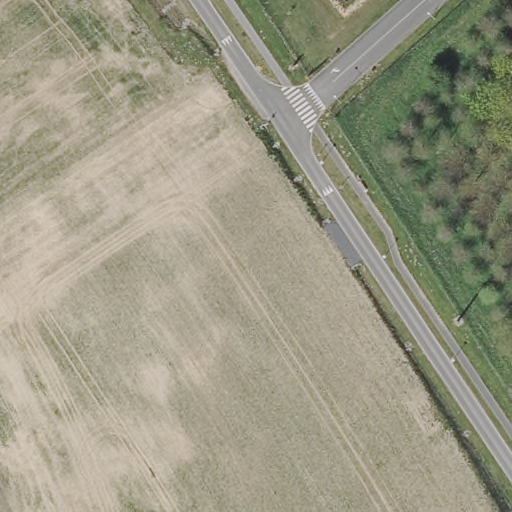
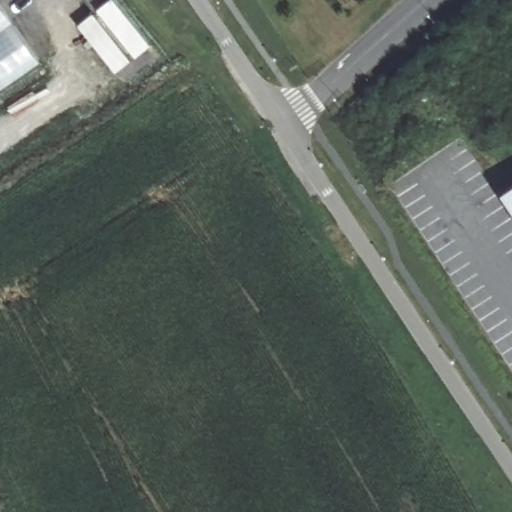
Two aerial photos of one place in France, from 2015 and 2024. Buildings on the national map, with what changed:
new [(0,91),(0,4),(41,63),(0,91)]
unchanged [(506,205),(512,201),(512,214),(506,205)]

